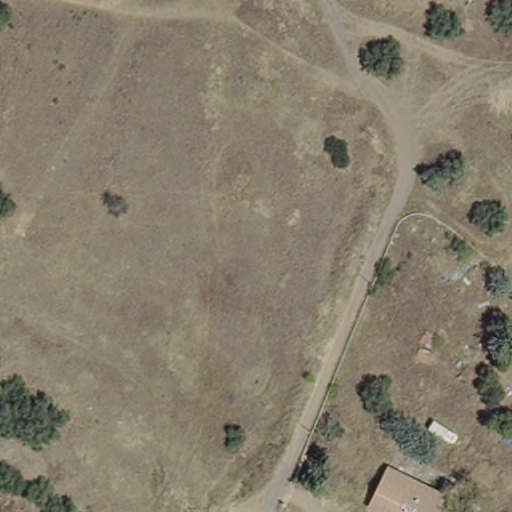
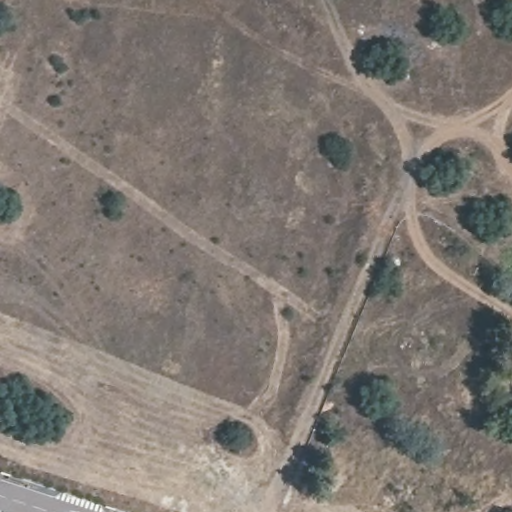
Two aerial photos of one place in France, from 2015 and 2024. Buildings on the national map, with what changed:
demolished [(389,467),(447,495),(438,512),(390,512),(370,502),(389,467)]

